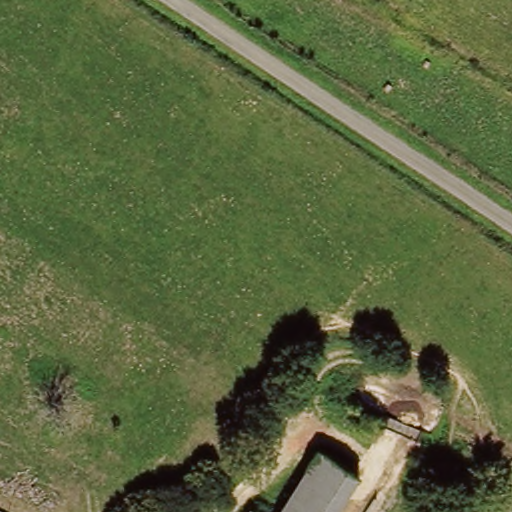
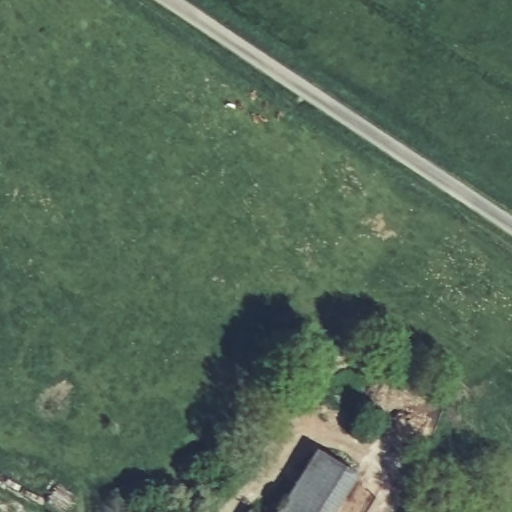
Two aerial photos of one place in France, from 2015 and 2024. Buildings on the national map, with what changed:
unchanged [(339,512),(280,512),(317,453),(359,481),(339,512)]

